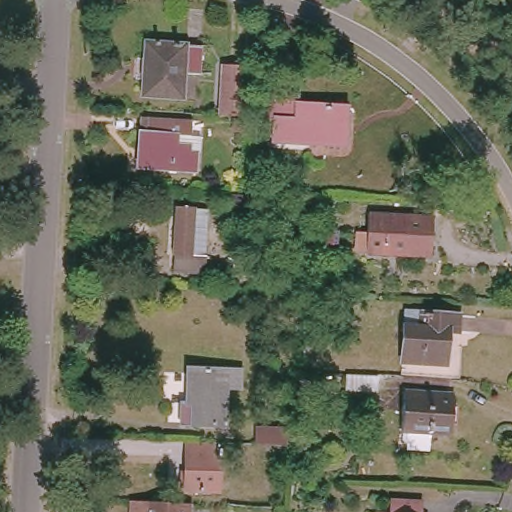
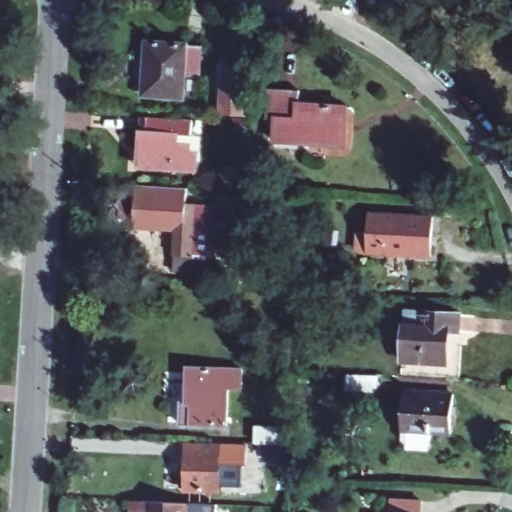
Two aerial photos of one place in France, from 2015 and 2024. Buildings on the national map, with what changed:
unchanged [(182,69),(180,92),(141,90),(145,37),(201,41),(198,70),(182,69)]
unchanged [(229,63),(248,64),(245,112),(226,110),(229,63)]
unchanged [(265,118),(267,86),(298,87),(298,101),(344,104),(342,144),(274,140),(275,119),(265,118)]
unchanged [(175,134),(175,140),(188,141),(186,170),(137,166),(139,130),(143,130),(144,117),(189,120),(188,134),(175,134)]
new [(185,205),(175,205),(174,230),(133,226),(136,185),(188,189),(185,205)]
unchanged [(175,205),(193,205),(205,206),(203,254),(205,254),(203,271),(171,269),(175,205)]
unchanged [(434,216),(432,255),(367,250),(369,212),(434,216)]
unchanged [(414,321),(415,306),(458,308),(457,326),(448,326),(445,358),(402,356),(404,320),(414,321)]
unchanged [(225,425),(191,422),(192,402),(185,401),(188,366),(229,368),(225,425)]
unchanged [(294,405),(288,405),(289,395),(256,392),(257,377),(295,380),(294,405)]
unchanged [(442,433),(427,432),(426,445),(403,443),(398,439),(399,430),(396,430),(398,391),(448,393),(447,405),(448,405),(448,411),(446,433),(442,433)]
unchanged [(259,451),(260,435),(290,436),(289,453),(259,451)]
unchanged [(216,450),(222,450),(220,485),(185,482),(188,436),(217,438),(216,450)]
unchanged [(385,511),(392,511),(393,495),(424,496),(424,512),(385,512),(385,511)]
unchanged [(190,512),(142,512),(143,501),(191,504),(190,512)]

